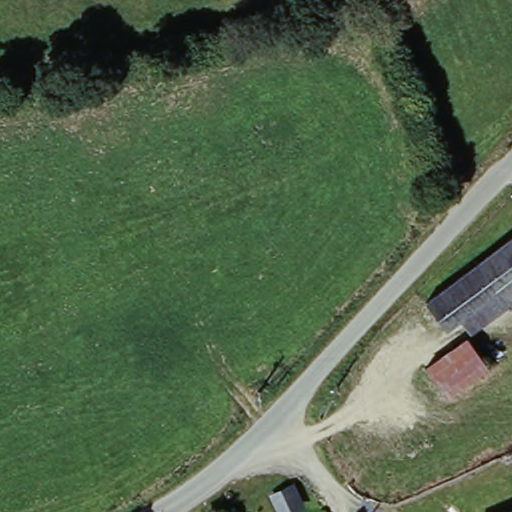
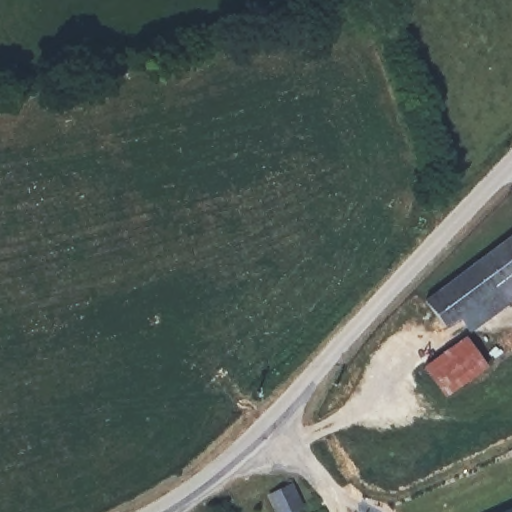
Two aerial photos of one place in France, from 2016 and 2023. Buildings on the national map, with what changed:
unchanged [(430,304),(512,243),(512,286),(462,322),(450,331),(430,304)]
unchanged [(512,309),(511,308),(473,337),(462,322),(512,286),(512,309)]
unchanged [(470,343),(491,373),(450,402),(428,373),(470,343)]
unchanged [(296,504),(279,512),(278,512),(270,496),(287,487),(296,504)]

